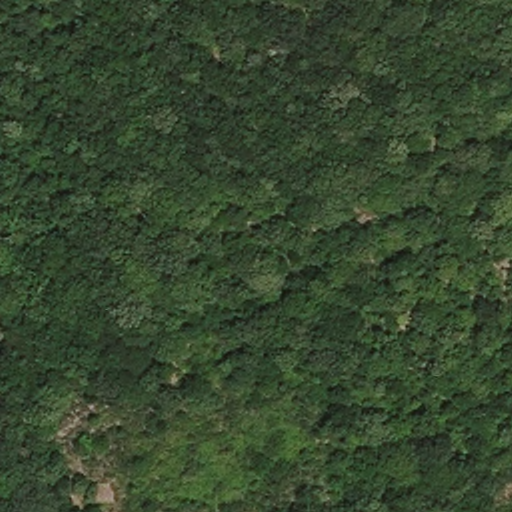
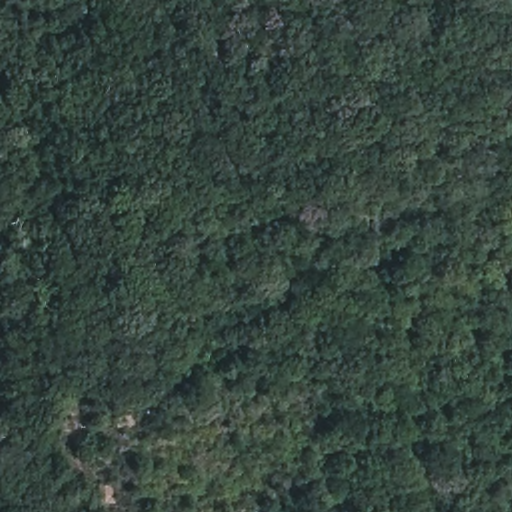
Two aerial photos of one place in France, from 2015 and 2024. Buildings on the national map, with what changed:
unchanged [(125,488),(120,508),(102,506),(103,486),(125,488)]

